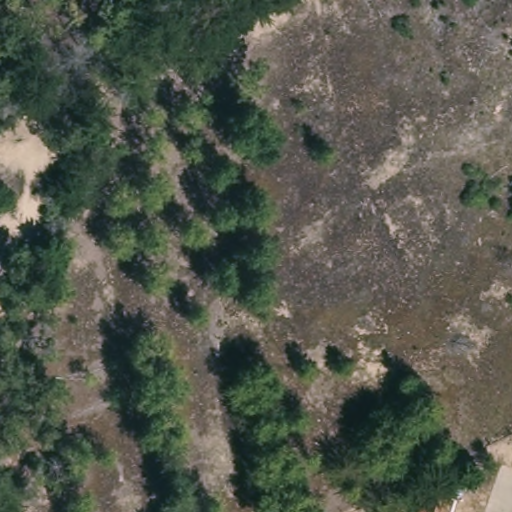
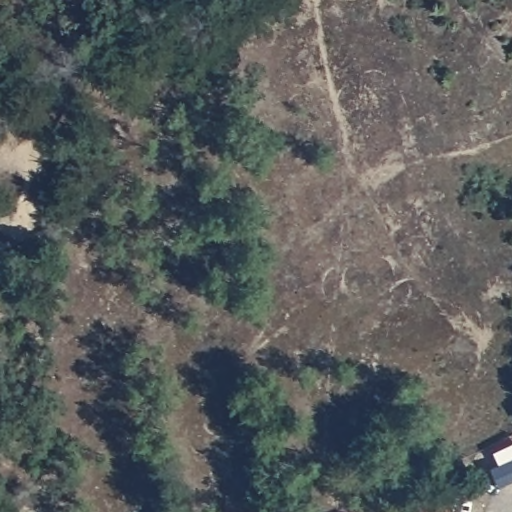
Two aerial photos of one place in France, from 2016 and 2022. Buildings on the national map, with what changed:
unchanged [(432,512),(435,501),(451,506),(449,512),(432,512)]

